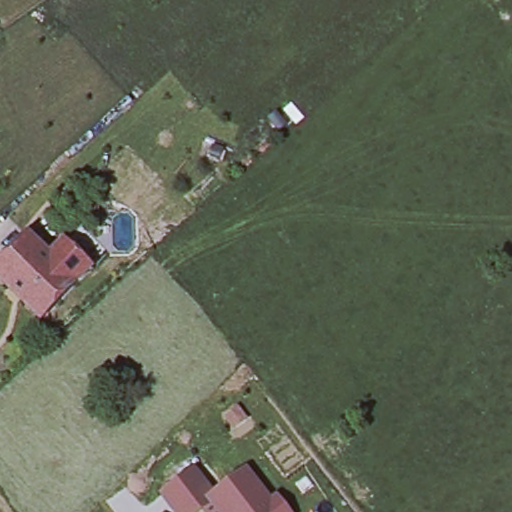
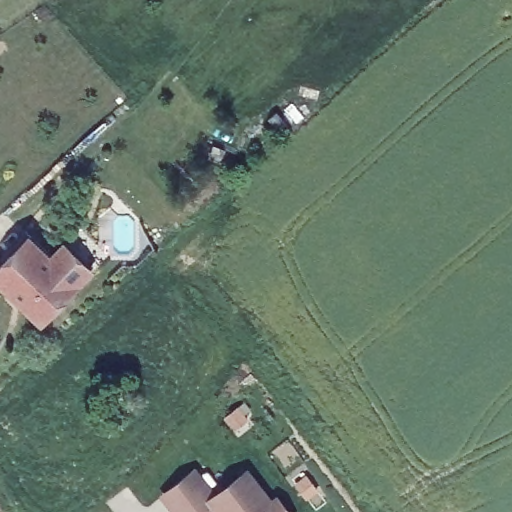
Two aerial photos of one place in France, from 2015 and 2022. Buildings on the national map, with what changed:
unchanged [(0,283),(0,264),(27,236),(48,257),(62,243),(85,265),(90,270),(40,321),(30,313),(0,283)]
unchanged [(201,510),(200,512),(174,512),(163,498),(193,475),(213,501),(245,476),(269,507),(275,503),(282,512),(203,512),(201,510)]

